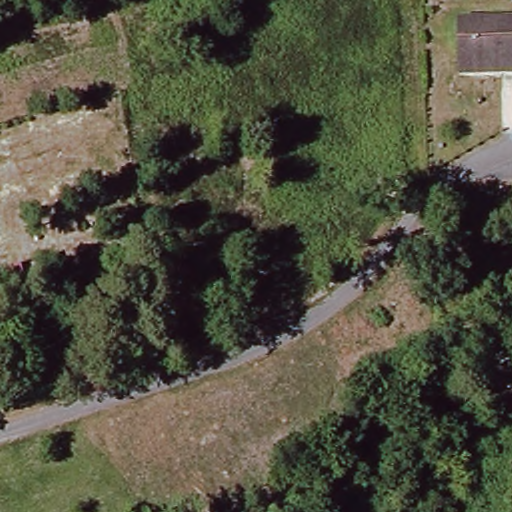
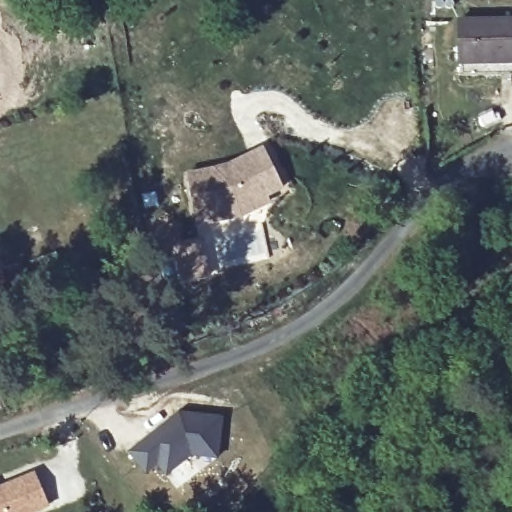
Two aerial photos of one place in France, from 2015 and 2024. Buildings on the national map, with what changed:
unchanged [(512,24),(512,76),(463,80),(460,26),(512,24)]
new [(243,214),(199,222),(198,216),(190,175),(225,168),(268,149),(287,185),(272,193),(274,200),(243,214)]
new [(205,240),(211,270),(191,273),(185,244),(205,240)]
new [(183,412),(225,420),(219,460),(193,456),(167,475),(159,464),(147,473),(131,450),(183,412)]
new [(7,484),(37,471),(51,502),(30,512),(0,512),(0,487),(7,484)]

